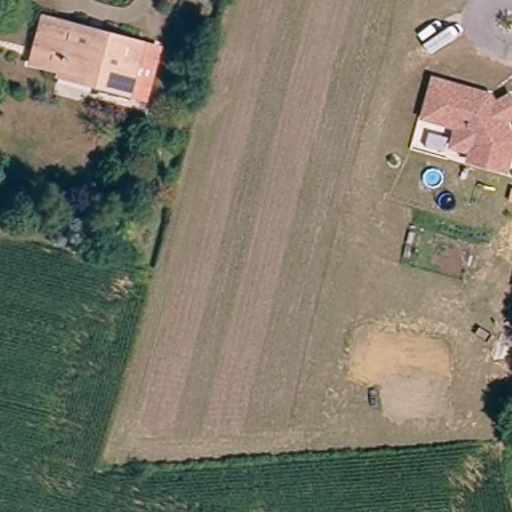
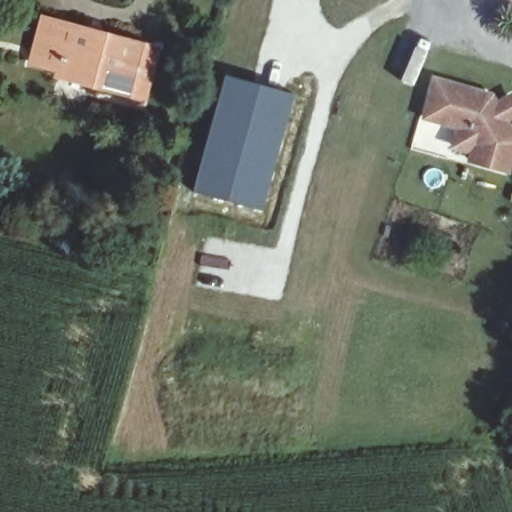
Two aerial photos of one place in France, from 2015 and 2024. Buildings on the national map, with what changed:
unchanged [(62,71),(47,67),(34,63),(44,20),(59,24),(157,48),(144,100),(99,90),(59,80),(62,71)]
new [(224,74),(296,94),(263,212),(192,192),(224,74)]
unchanged [(452,124),(422,114),(433,78),(489,97),(494,106),(501,103),(510,98),(512,102),(512,117),(509,118),(503,122),(512,138),(512,149),(505,172),(467,160),(469,155),(472,145),(462,150),(453,133),(463,128),(452,124)]

